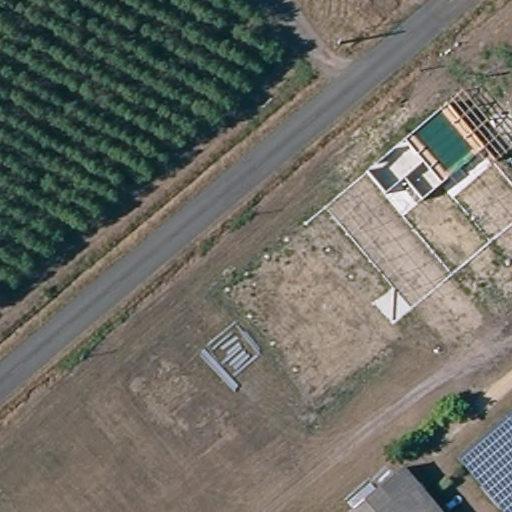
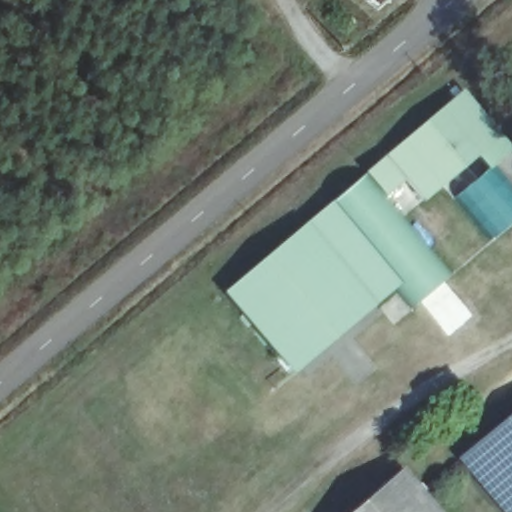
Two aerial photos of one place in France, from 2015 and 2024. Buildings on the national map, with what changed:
new [(464,87),(512,146),(512,149),(490,168),(478,153),(424,201),(404,179),(385,194),(365,170),(464,87)]
new [(454,197),(490,168),(494,164),(512,184),(512,223),(492,240),(454,197)]
new [(385,194),(454,270),(416,305),(397,284),(403,279),(334,198),(365,170),(385,194)]
new [(224,290),(334,198),(403,279),(294,373),(224,290)]
unchanged [(512,512),(493,512),(449,458),(512,408),(512,512)]
unchanged [(405,471),(438,512),(354,512),(405,471)]

